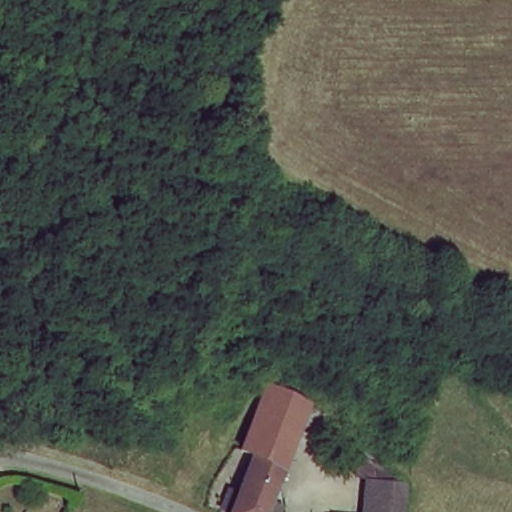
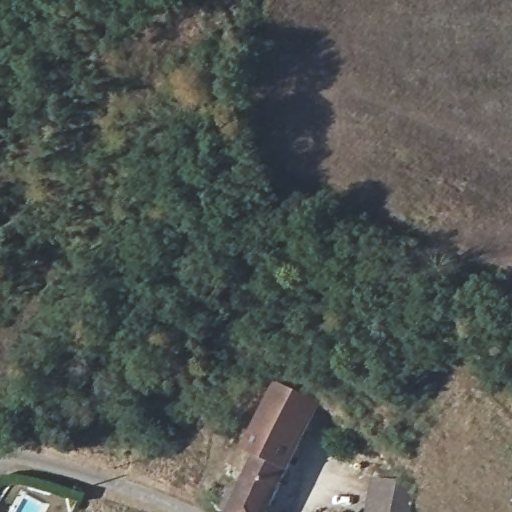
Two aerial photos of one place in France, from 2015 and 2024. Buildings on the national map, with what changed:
unchanged [(256,467),(243,461),(268,391),(314,406),(272,512),(238,512),(256,467)]
unchanged [(342,503),(370,508),(371,504),(374,488),(410,494),(409,510),(408,512),(340,512),(342,503)]

